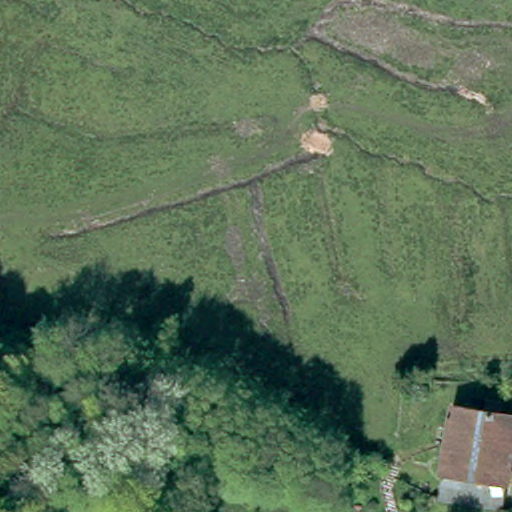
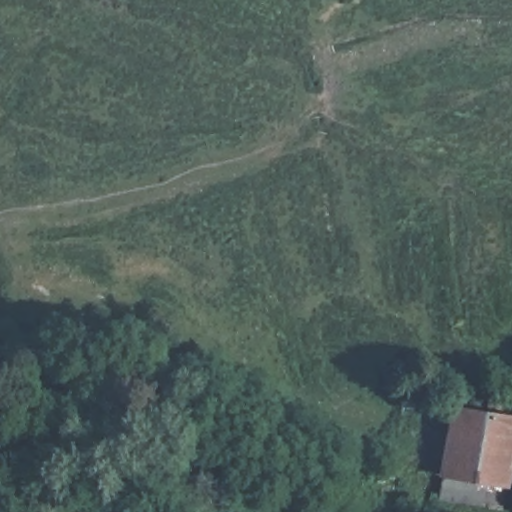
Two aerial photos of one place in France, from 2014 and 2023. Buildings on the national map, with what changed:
unchanged [(487,404),(488,398),(499,399),(499,406),(498,412),(512,415),(512,449),(508,483),(449,473),(459,408),(485,411),(487,404)]

